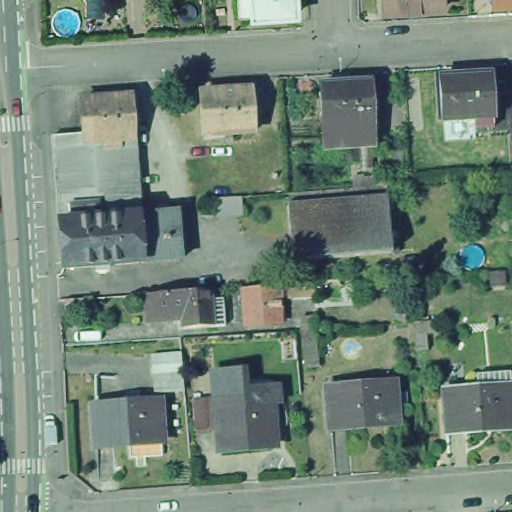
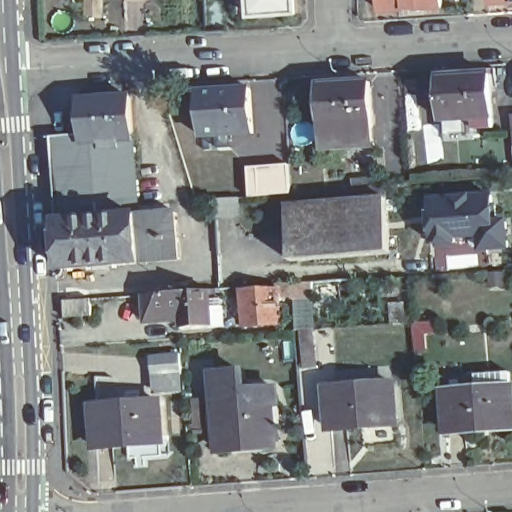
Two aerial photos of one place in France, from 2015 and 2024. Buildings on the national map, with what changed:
unchanged [(296,0),(297,15),(256,17),(241,18),(240,0),(296,0)]
unchanged [(385,15),(384,0),(444,0),(444,12),(385,15)]
unchanged [(493,8),(493,0),(512,0),(512,7),(493,8)]
unchanged [(494,80),(497,133),(477,135),(476,125),(445,127),(444,84),(494,80)]
unchanged [(369,83),(372,147),(323,151),(319,86),(369,83)]
unchanged [(250,90),(252,133),(202,137),(199,94),(250,90)]
unchanged [(107,272),(107,276),(95,277),(95,272),(60,275),(57,229),(57,218),(52,142),(82,140),(80,106),(129,102),(132,146),(138,211),(140,222),(176,219),(180,266),(107,272)]
unchanged [(510,118),(512,118),(512,140),(510,118)]
new [(492,191),(498,217),(498,219),(509,219),(510,251),(475,254),(474,243),(469,243),(469,242),(428,245),(425,197),(492,191)]
unchanged [(385,202),(390,257),(290,266),(286,210),(385,202)]
unchanged [(243,203),(245,219),(222,221),(221,205),(243,203)]
unchanged [(312,286),(313,302),(290,305),(290,288),(312,286)]
unchanged [(260,292),(262,294),(278,293),(280,328),(244,332),(242,294),(260,292)]
unchanged [(80,300),(89,300),(90,316),(62,318),(62,302),(80,300)]
unchanged [(160,311),(209,307),(209,315),(215,314),(219,341),(181,345),(180,335),(145,339),(144,311),(157,310),(160,309),(160,311)]
new [(433,321),(435,335),(427,335),(427,353),(414,355),(412,322),(433,321)]
unchanged [(185,370),(155,372),(154,352),(184,349),(185,370)]
unchanged [(232,373),(232,367),(237,367),(237,371),(242,372),(243,390),(275,388),(277,404),(270,405),(272,447),(217,451),(212,374),(232,373)]
unchanged [(454,433),(450,392),(484,390),(482,376),(512,374),(512,429),(454,433)]
unchanged [(392,383),(395,426),(327,431),(324,388),(392,383)]
unchanged [(132,453),(132,441),(99,443),(96,402),(162,397),(165,437),(165,451),(132,453)]

